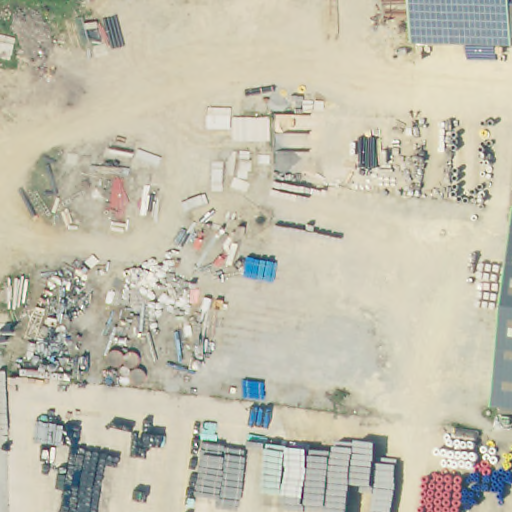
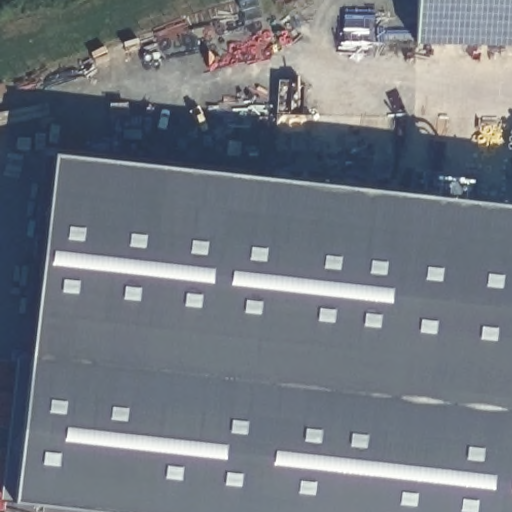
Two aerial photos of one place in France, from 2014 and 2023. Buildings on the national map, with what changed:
unchanged [(414,40),(414,0),(512,0),(512,42),(414,40)]
new [(496,406),(512,408),(512,512),(98,512),(13,502),(53,156),(512,206),(512,266),(496,406)]
unchanged [(496,406),(512,266),(512,408),(496,406)]

